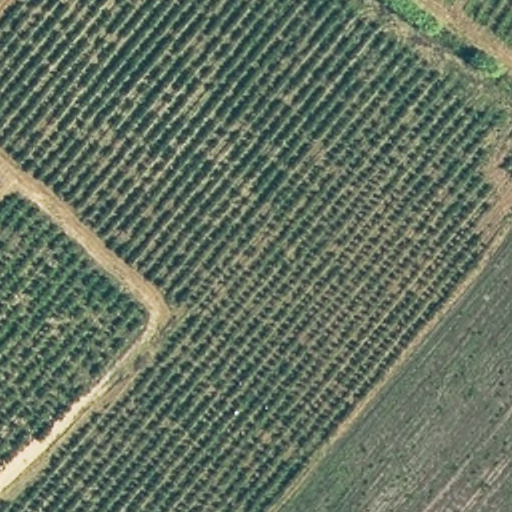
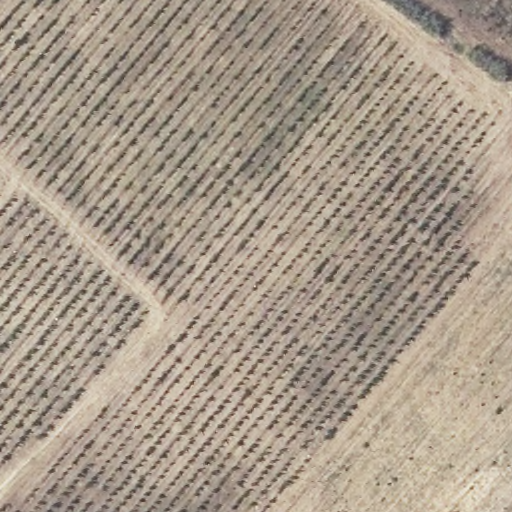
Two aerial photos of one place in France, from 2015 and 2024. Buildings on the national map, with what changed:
[]

